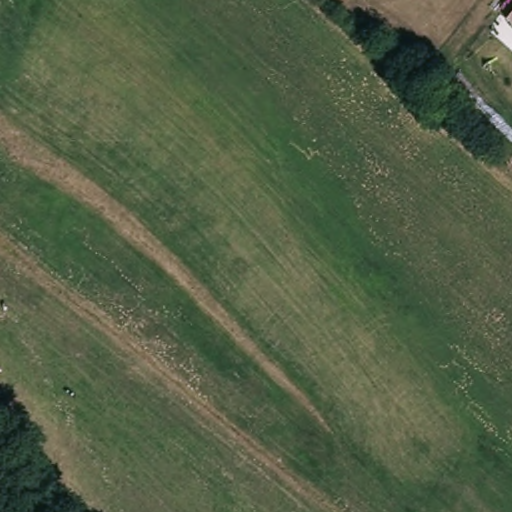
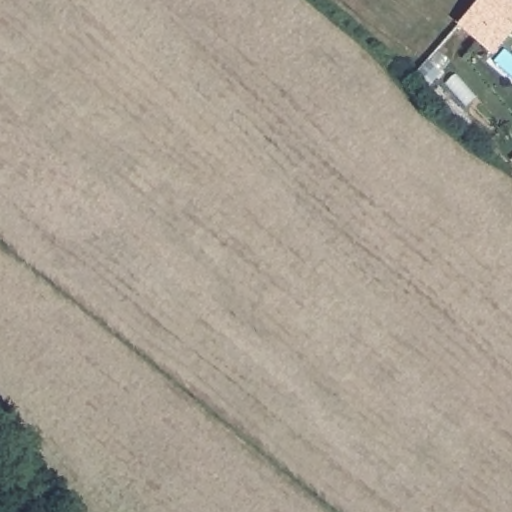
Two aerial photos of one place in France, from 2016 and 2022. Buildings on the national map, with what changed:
new [(512,25),(512,33),(492,54),(457,24),(479,0),(512,0),(512,11),(505,19),(512,25)]
unchanged [(512,11),(512,25),(505,19),(512,11)]

